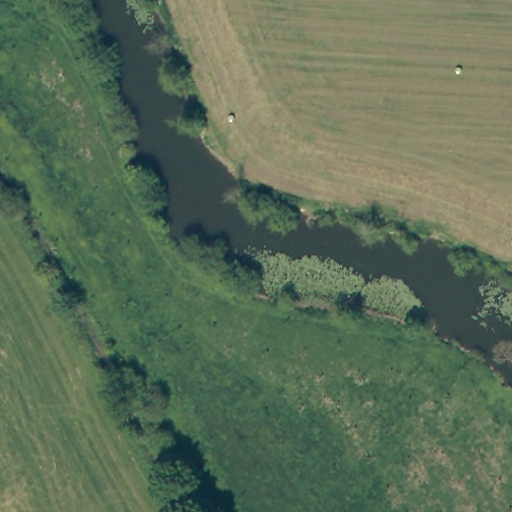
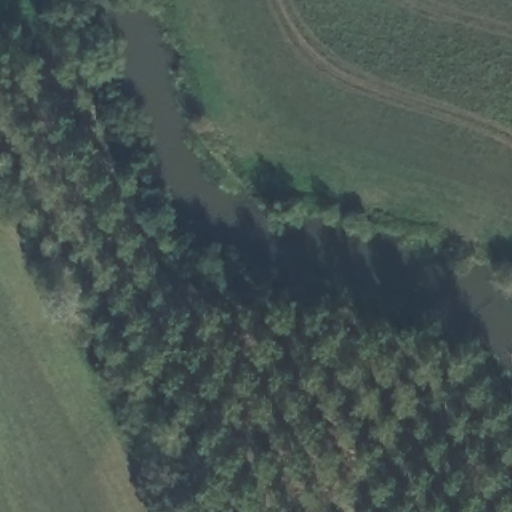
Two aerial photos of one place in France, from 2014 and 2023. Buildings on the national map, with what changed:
[]

